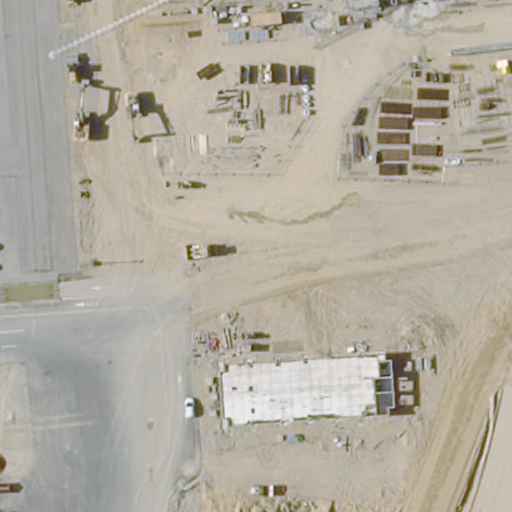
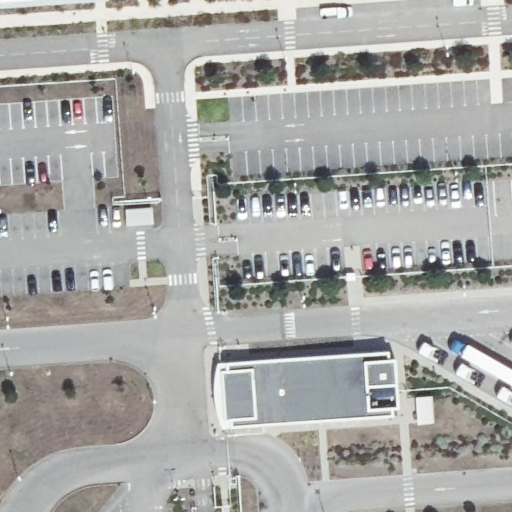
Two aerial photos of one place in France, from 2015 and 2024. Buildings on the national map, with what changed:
new [(0,13),(0,0),(169,0),(0,13)]
new [(385,354),(389,416),(215,431),(210,368),(385,354)]

